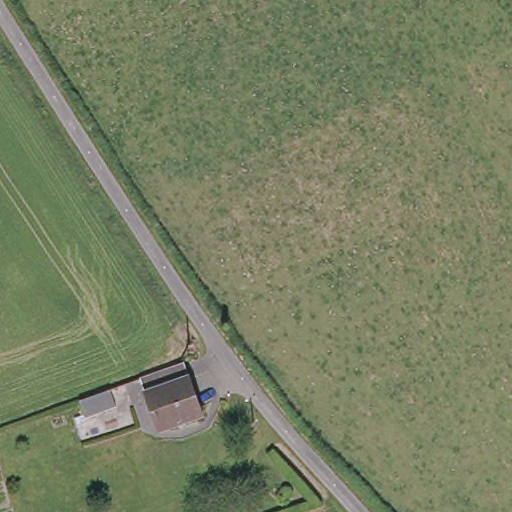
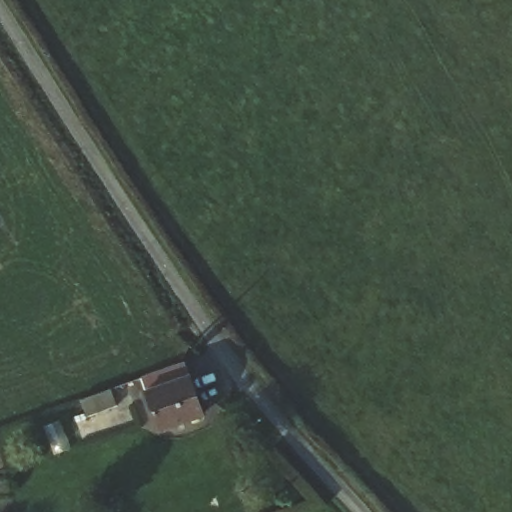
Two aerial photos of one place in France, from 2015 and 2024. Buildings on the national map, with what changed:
unchanged [(181,359),(198,412),(159,424),(143,373),(181,359)]

